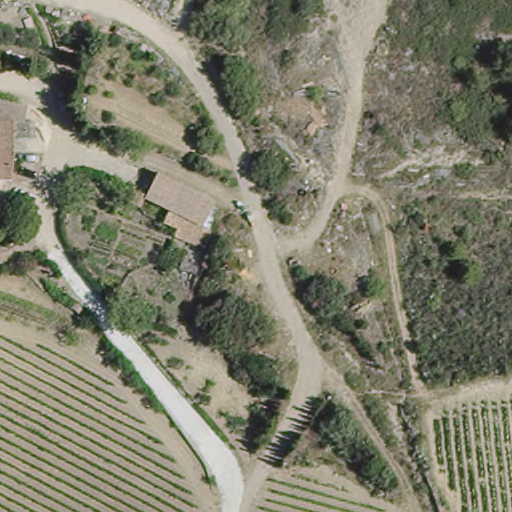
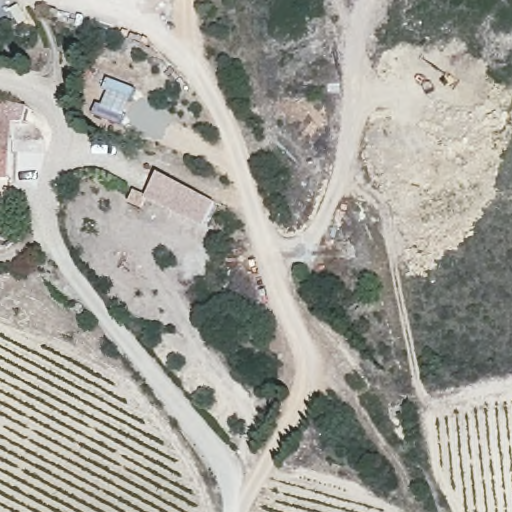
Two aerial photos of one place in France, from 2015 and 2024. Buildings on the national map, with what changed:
unchanged [(12,177),(0,178),(0,120),(15,120),(12,177)]
unchanged [(184,236),(166,230),(172,211),(144,200),(156,176),(215,204),(206,221),(198,243),(184,236)]

